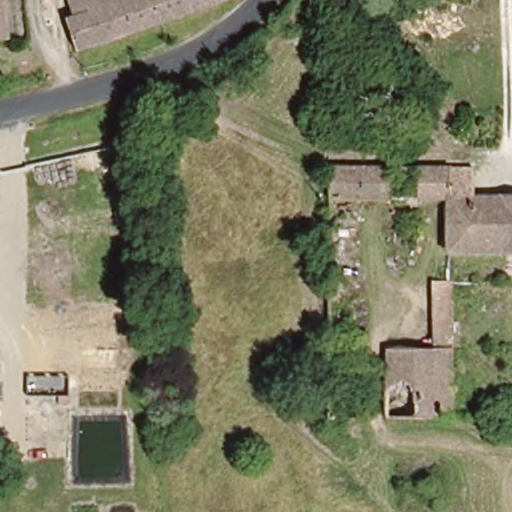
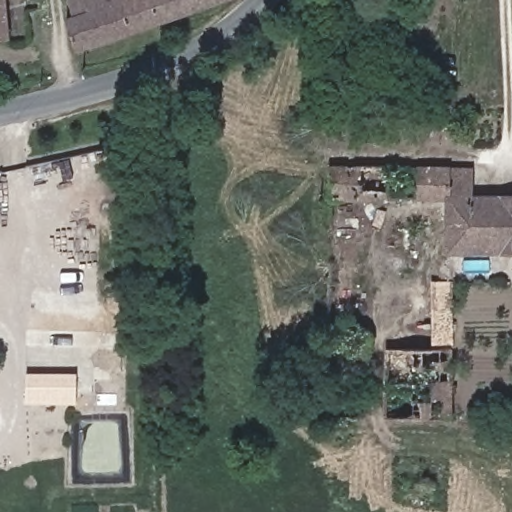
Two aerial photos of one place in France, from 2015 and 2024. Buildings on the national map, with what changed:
unchanged [(68,0),(221,0),(146,27),(77,48),(67,19),(72,17),(68,0)]
unchanged [(0,6),(2,37),(0,38),(0,6)]
unchanged [(329,195),(330,163),(472,164),(472,191),(512,191),(512,248),(446,247),(445,196),(360,195),(329,195)]
unchanged [(448,418),(381,417),(383,348),(450,350),(448,418)]
new [(77,373),(77,405),(25,405),(26,373),(77,373)]

